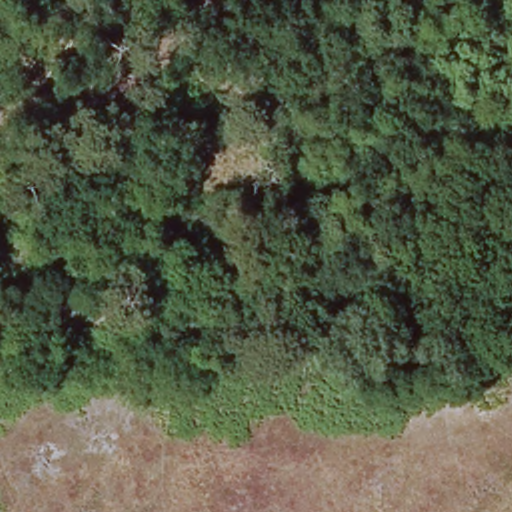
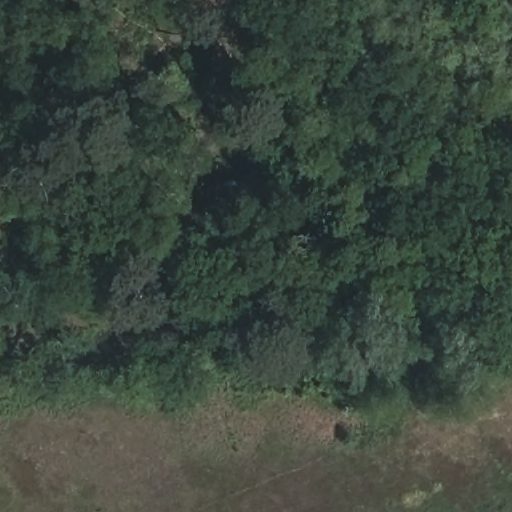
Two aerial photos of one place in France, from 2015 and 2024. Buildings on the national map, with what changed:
[]

